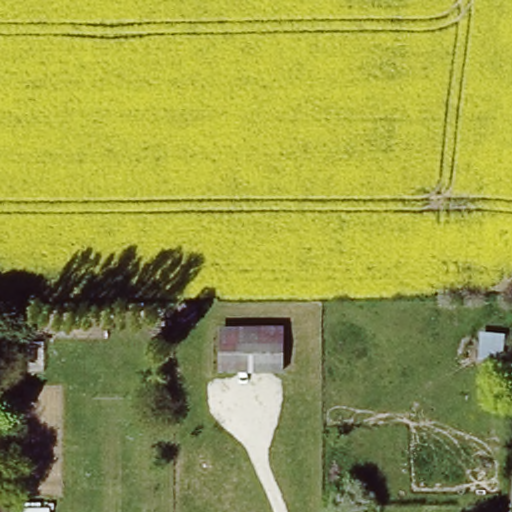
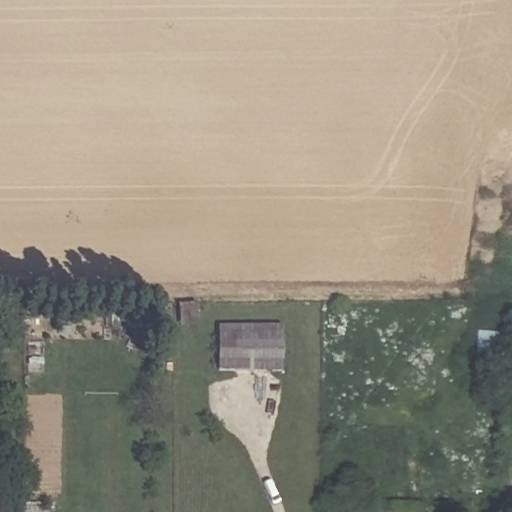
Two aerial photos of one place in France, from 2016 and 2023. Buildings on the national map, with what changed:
unchanged [(283,327),(282,372),(220,371),(221,325),(283,327)]
unchanged [(480,358),(483,328),(512,331),(512,351),(510,362),(480,358)]

